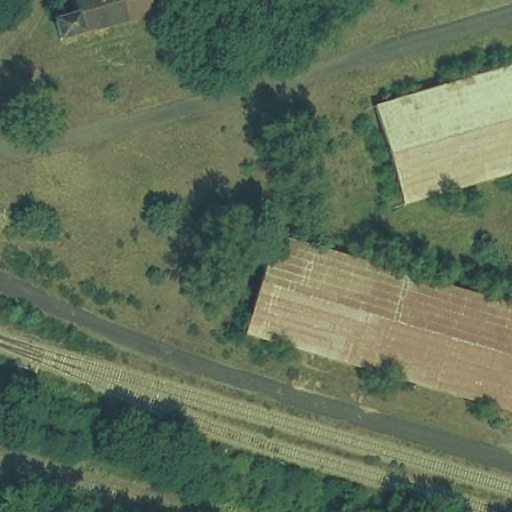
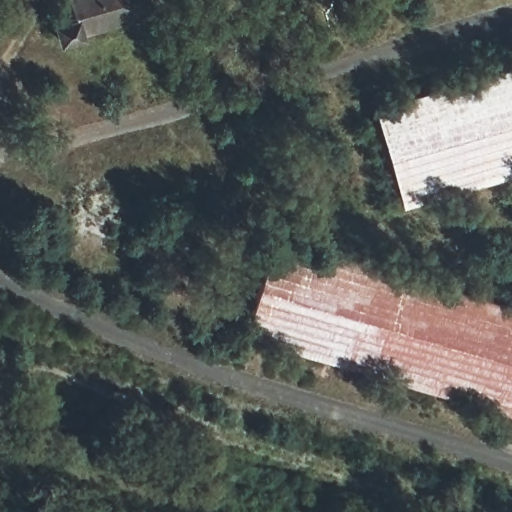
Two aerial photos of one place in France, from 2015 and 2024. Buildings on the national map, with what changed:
unchanged [(63,0),(155,0),(159,18),(65,44),(55,3),(63,0)]
unchanged [(377,109),(512,69),(512,179),(406,210),(377,109)]
unchanged [(512,305),(512,416),(247,338),(279,236),(512,305)]

